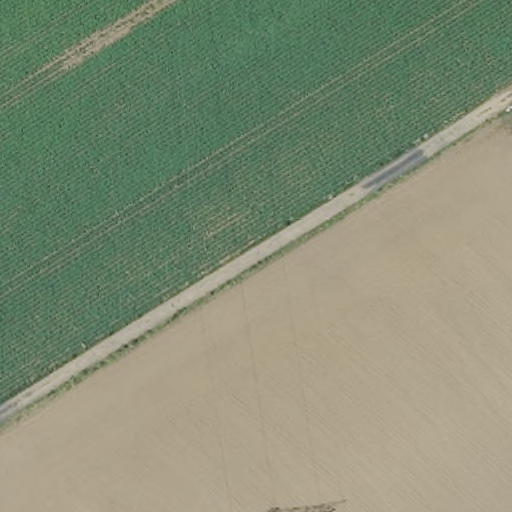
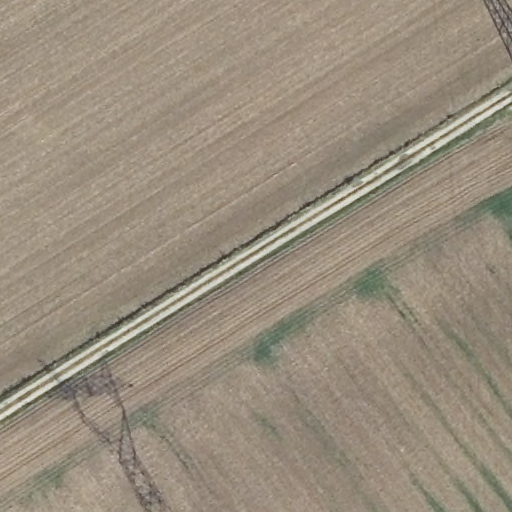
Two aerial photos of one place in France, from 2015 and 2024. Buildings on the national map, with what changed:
[]

